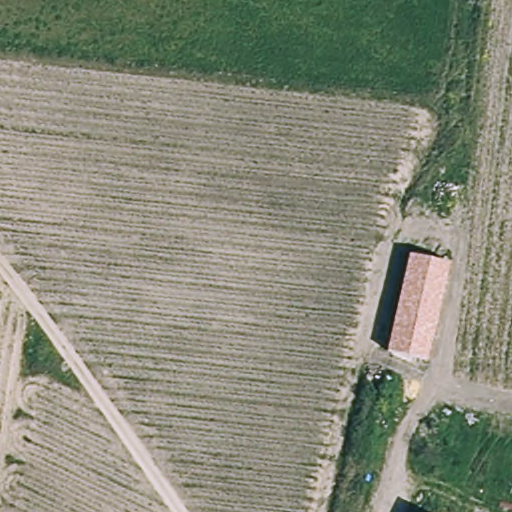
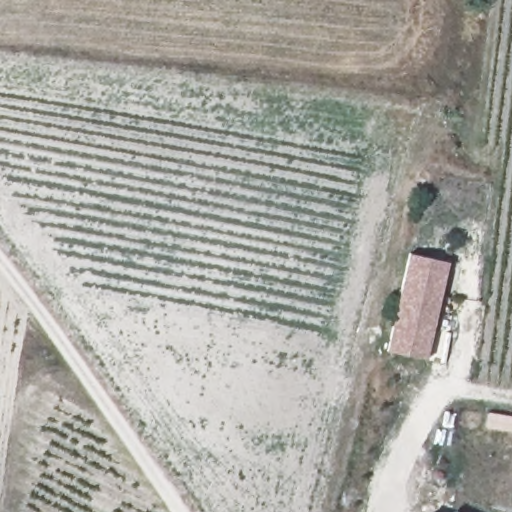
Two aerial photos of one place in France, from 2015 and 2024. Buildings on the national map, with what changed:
unchanged [(410,256),(451,265),(428,361),(389,352),(410,256)]

